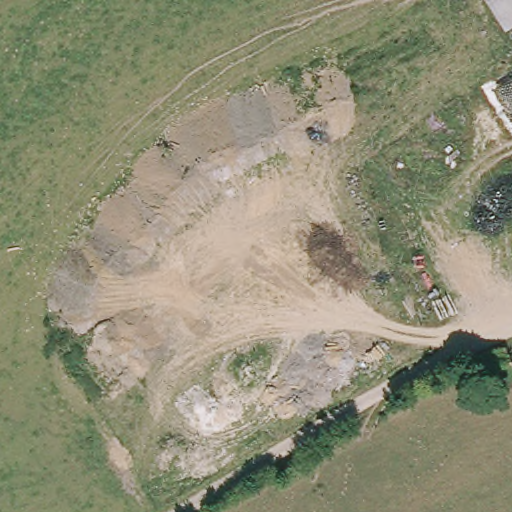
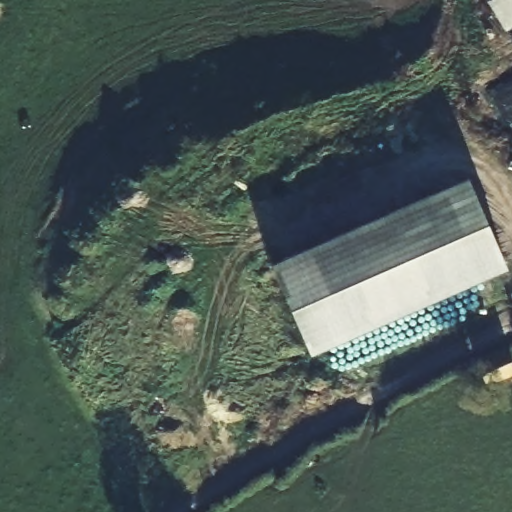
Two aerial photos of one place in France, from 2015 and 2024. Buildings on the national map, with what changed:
new [(512,0),(512,23),(488,37),(466,0),(512,0)]
demolished [(512,0),(512,19),(506,22),(493,0),(512,0)]
new [(467,176),(506,269),(309,355),(269,262),(467,176)]
unchanged [(512,374),(487,387),(474,362),(504,349),(507,354),(512,367),(512,374)]

